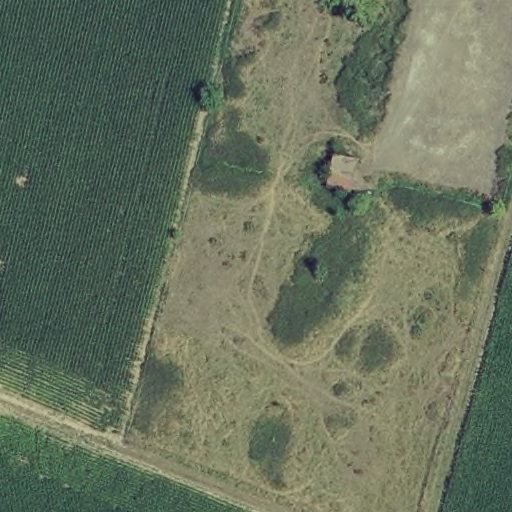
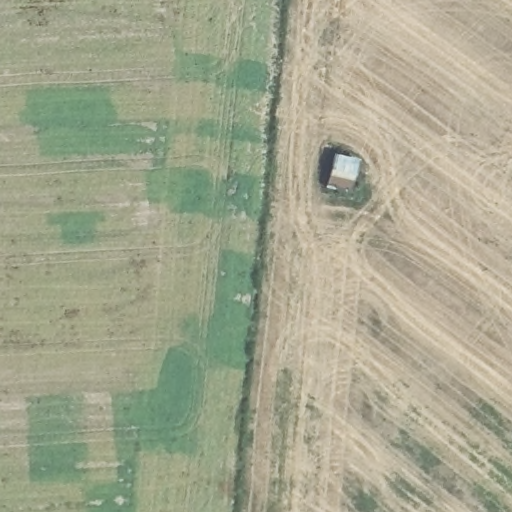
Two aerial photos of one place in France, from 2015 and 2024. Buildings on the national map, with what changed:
unchanged [(361,159),(355,187),(322,177),(331,152),(361,159)]

